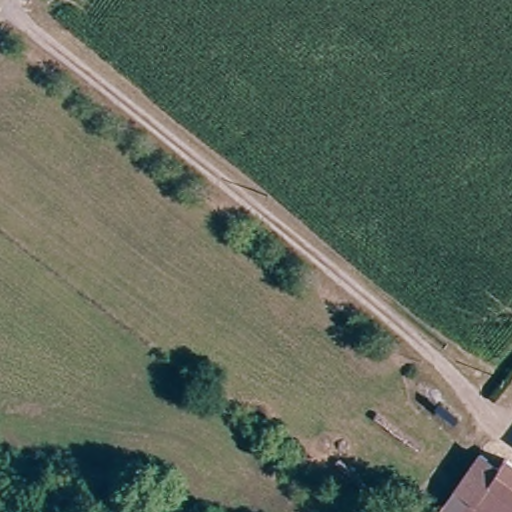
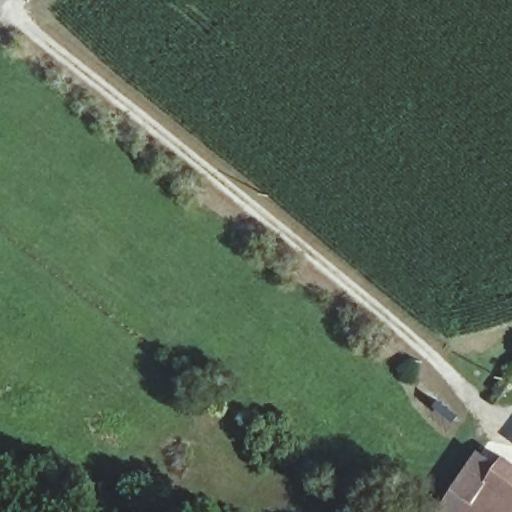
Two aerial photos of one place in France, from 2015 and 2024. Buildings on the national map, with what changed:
unchanged [(483,457),(500,470),(510,458),(512,459),(512,512),(439,512),(483,457)]

